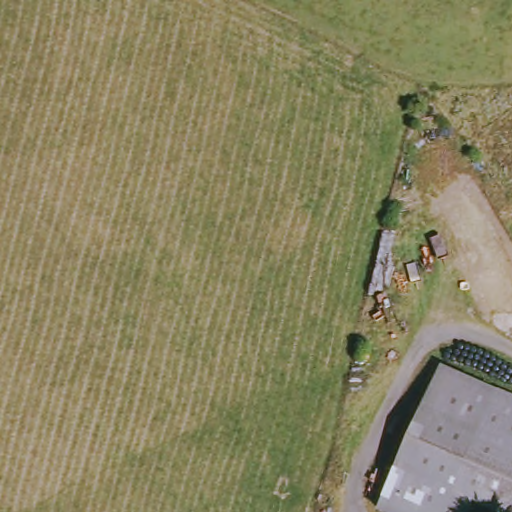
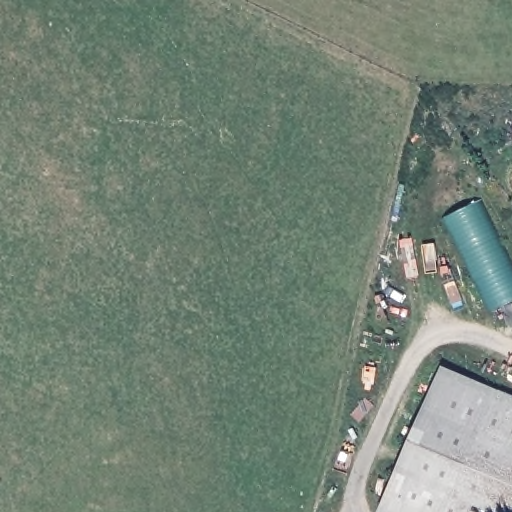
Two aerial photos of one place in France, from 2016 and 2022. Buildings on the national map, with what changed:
new [(441,220),(482,197),(512,256),(512,300),(489,311),(441,220)]
unchanged [(479,502),(475,512),(390,512),(387,510),(450,367),(512,395),(512,512),(502,512),(479,502)]

